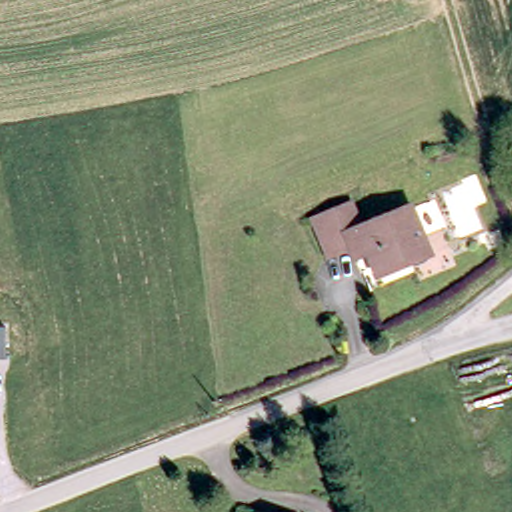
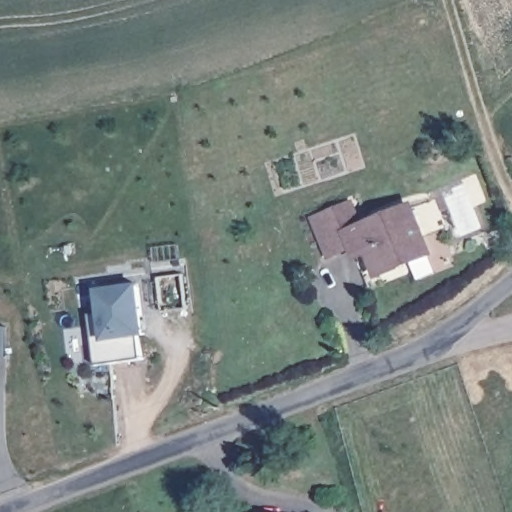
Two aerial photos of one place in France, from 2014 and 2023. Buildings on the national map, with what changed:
unchanged [(365,224),(413,206),(430,250),(373,271),(364,250),(350,255),(344,241),(327,247),(318,220),(357,205),(365,224)]
new [(99,309),(97,289),(140,283),(147,335),(139,336),(142,357),(97,363),(90,313),(99,309)]
unchanged [(7,357),(0,358),(0,328),(5,328),(7,357)]

